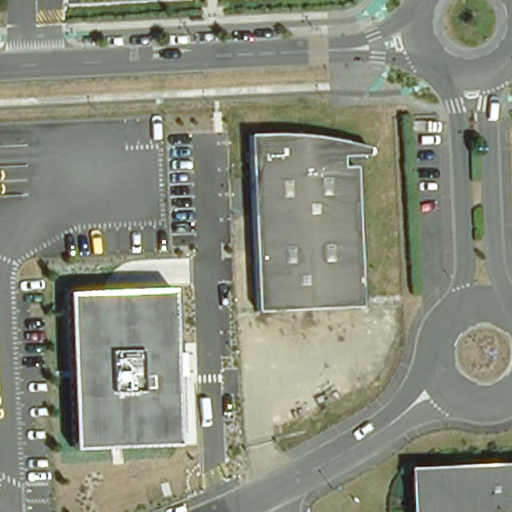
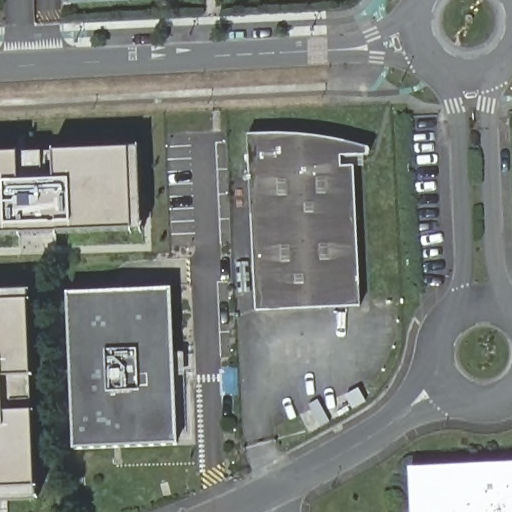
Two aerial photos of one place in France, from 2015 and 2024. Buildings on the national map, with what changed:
unchanged [(144,0),(69,5),(68,0),(144,0)]
unchanged [(358,299),(256,305),(246,135),(299,131),(310,131),(336,135),(355,140),(362,143),(365,145),(366,149),(364,151),(361,153),(357,154),(340,154),(340,163),(352,163),(358,299)]
new [(145,232),(0,236),(0,149),(143,142),(145,232)]
new [(40,498),(0,498),(0,289),(33,287),(40,498)]
unchanged [(176,445),(73,450),(66,293),(170,289),(176,445)]
unchanged [(485,473),(495,472),(512,472),(512,512),(414,512),(412,476),(485,473)]

